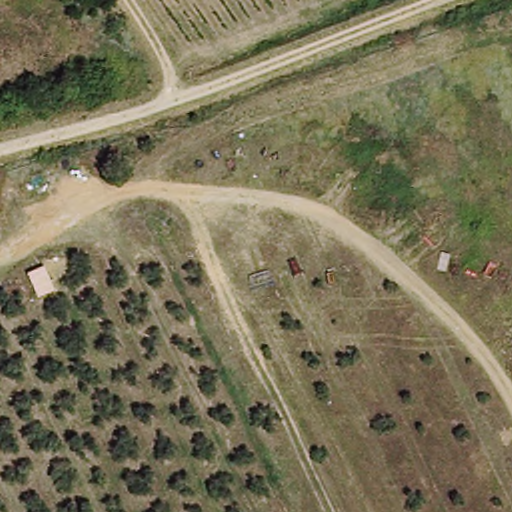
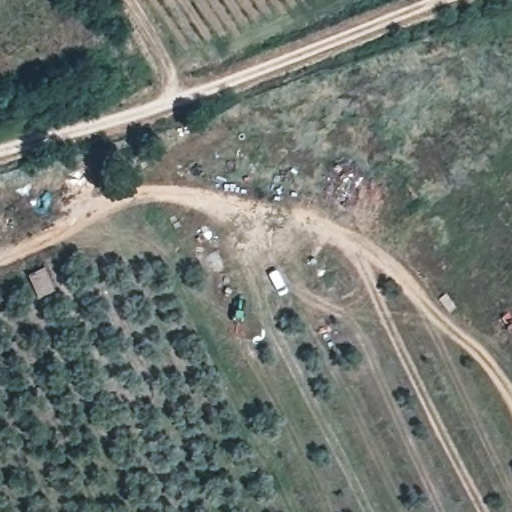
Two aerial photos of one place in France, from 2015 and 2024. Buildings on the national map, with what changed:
unchanged [(56,291),(41,298),(28,273),(42,268),(56,291)]

